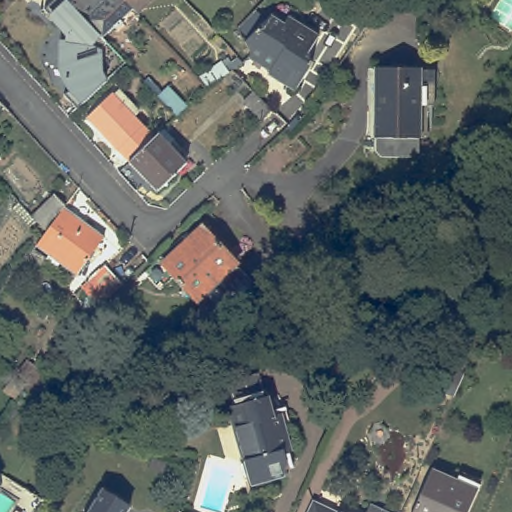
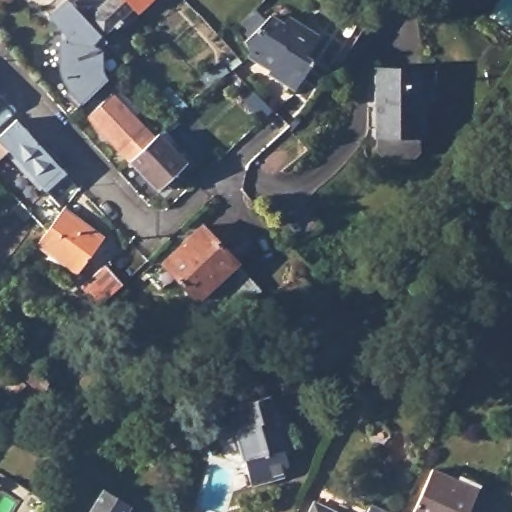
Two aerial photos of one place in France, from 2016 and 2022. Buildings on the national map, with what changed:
unchanged [(104,33),(102,73),(108,80),(83,103),(67,90),(61,78),(58,61),(58,41),(65,41),(65,35),(49,18),(68,0),(70,0),(103,34),(104,33)]
unchanged [(128,0),(134,6),(103,34),(70,0),(128,0)]
unchanged [(134,6),(128,0),(146,0),(136,9),(134,6)]
unchanged [(254,51),(254,46),(249,38),(263,25),(274,11),(287,20),(290,12),(324,33),(310,53),(318,58),(302,84),(274,68),(251,55),(254,51)]
unchanged [(204,72),(227,57),(230,62),(243,52),(248,59),(234,68),(212,84),(204,72)]
unchanged [(376,76),(376,55),(420,56),(420,123),(419,123),(419,138),(414,143),(382,143),(377,138),(377,123),(375,123),(375,92),(376,76)]
unchanged [(86,118),(111,94),(116,89),(137,111),(132,115),(154,138),(128,161),(86,118)]
unchanged [(253,92),(272,111),(263,121),(243,101),(253,92)]
new [(65,173),(46,191),(6,152),(0,158),(0,135),(16,120),(65,173)]
unchanged [(158,134),(163,129),(174,141),(169,146),(187,164),(158,192),(128,161),(154,138),(158,134)]
unchanged [(30,212),(53,190),(64,202),(63,204),(79,216),(104,234),(77,270),(35,240),(45,227),(30,212)]
unchanged [(179,283),(164,297),(149,280),(164,266),(166,269),(207,232),(242,270),(203,308),(179,283)]
unchanged [(100,306),(82,290),(104,267),(121,284),(100,306)]
unchanged [(39,395),(29,385),(15,373),(26,362),(49,384),(39,395)]
unchanged [(431,377),(437,364),(462,375),(453,396),(437,389),(427,385),(431,377)]
unchanged [(286,452),(289,462),(284,473),(250,482),(229,402),(232,401),(228,384),(259,375),(264,392),(269,391),(275,410),(282,408),(290,439),(293,450),(286,452)]
unchanged [(431,470),(455,481),(464,476),(481,483),(468,512),(412,512),(431,470)]
unchanged [(114,500),(130,510),(128,512),(90,512),(103,492),(114,500)]
unchanged [(318,503),(338,512),(313,512),(318,503)]
unchanged [(179,508),(188,512),(177,512),(179,508)]
unchanged [(374,508),(382,512),(372,512),(374,508)]

